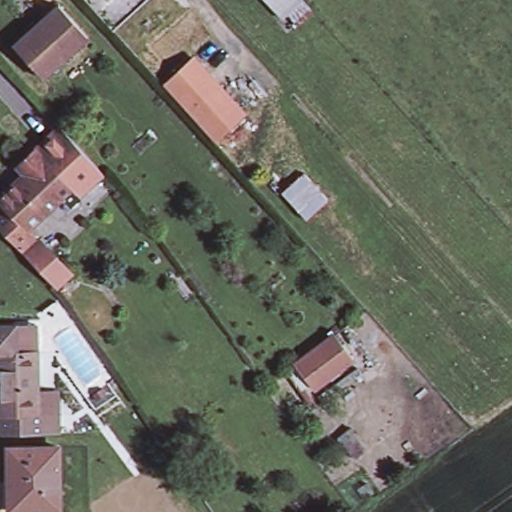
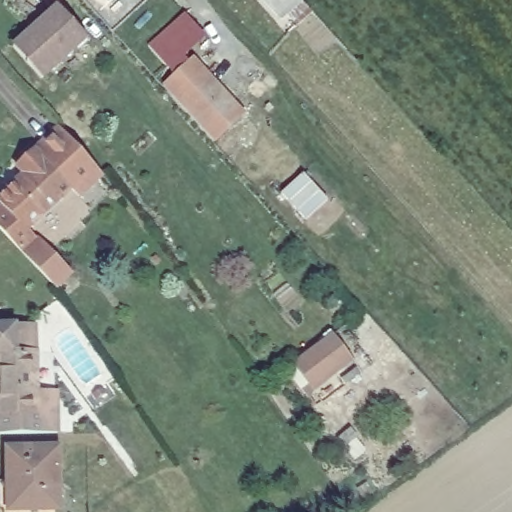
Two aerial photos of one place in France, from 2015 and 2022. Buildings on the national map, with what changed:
unchanged [(305,4),(284,22),(264,0),(265,0),(301,0),(305,4)]
unchanged [(91,40),(47,77),(19,44),(63,6),(91,40)]
new [(204,35),(167,68),(147,45),(185,12),(204,35)]
unchanged [(212,137),(162,82),(194,52),(245,109),(212,137)]
unchanged [(64,128),(107,175),(82,197),(75,189),(40,149),(64,128)]
unchanged [(40,149),(75,189),(34,225),(37,235),(22,248),(0,221),(0,211),(10,201),(7,198),(30,177),(21,165),(40,149)]
unchanged [(37,235),(72,275),(57,288),(22,248),(37,235)]
unchanged [(27,323),(34,323),(34,331),(35,350),(38,410),(0,411),(0,324),(15,323),(27,323)]
unchanged [(350,360),(310,389),(292,364),(333,336),(350,360)]
unchanged [(52,410),(54,428),(0,431),(0,411),(38,410),(52,410)]
unchanged [(58,447),(61,508),(10,510),(9,447),(58,447)]
demolished [(141,497),(152,512),(114,512),(140,495),(141,497)]

